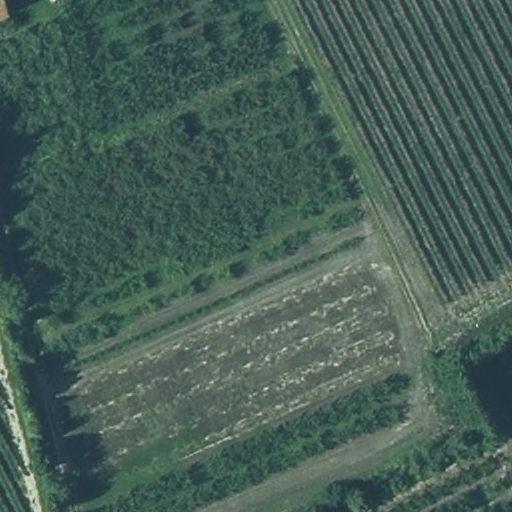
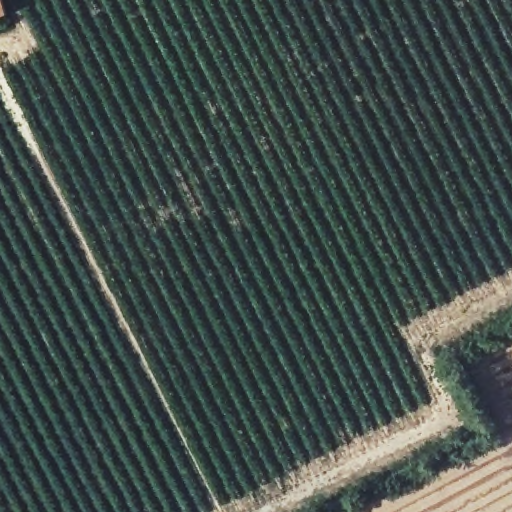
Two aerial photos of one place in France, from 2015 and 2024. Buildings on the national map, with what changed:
unchanged [(8,15),(0,18),(0,0),(3,0),(8,15)]

